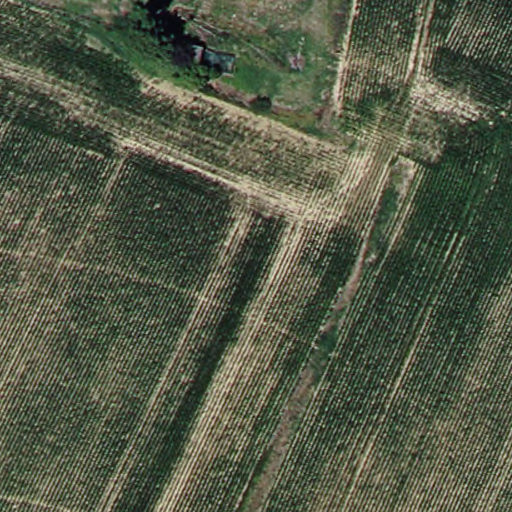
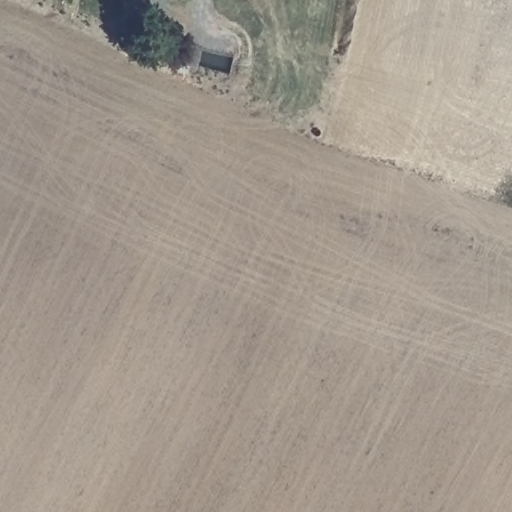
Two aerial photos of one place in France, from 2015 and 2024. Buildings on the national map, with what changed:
unchanged [(199,83),(185,81),(187,63),(203,66),(199,83)]

